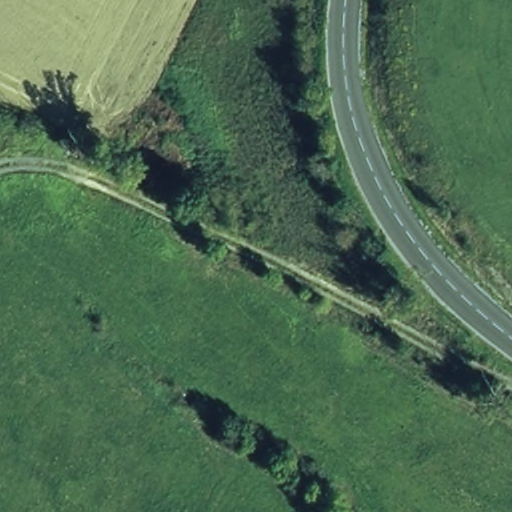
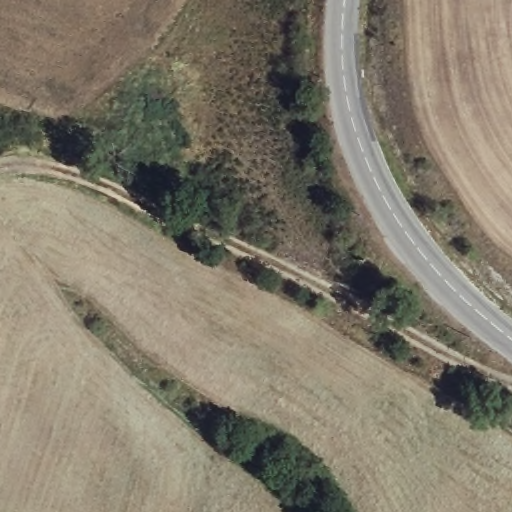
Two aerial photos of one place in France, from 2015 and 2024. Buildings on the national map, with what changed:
[]

